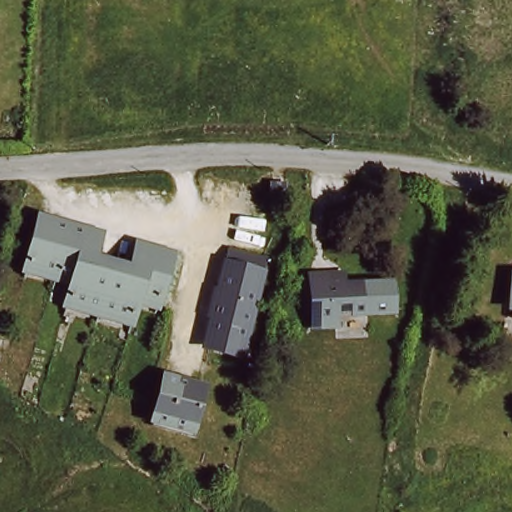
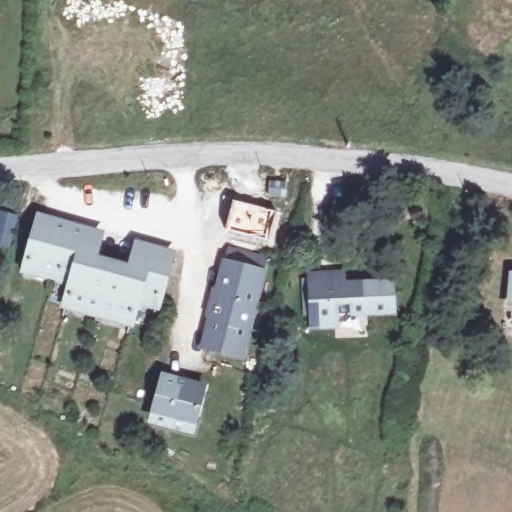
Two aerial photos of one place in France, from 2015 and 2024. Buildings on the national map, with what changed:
unchanged [(274,179),(286,179),(287,195),(274,195),(274,179)]
unchanged [(35,235),(95,249),(89,274),(126,282),(132,259),(167,268),(155,313),(139,310),(134,332),(69,316),(73,298),(23,286),(35,235)]
unchanged [(262,265),(242,347),(209,338),(217,307),(214,306),(219,286),(222,286),(229,257),(262,265)]
unchanged [(317,273),(343,273),(343,285),(397,285),(397,311),(343,312),(343,323),(317,323),(317,273)]
unchanged [(161,379),(204,390),(194,435),(150,423),(161,379)]

